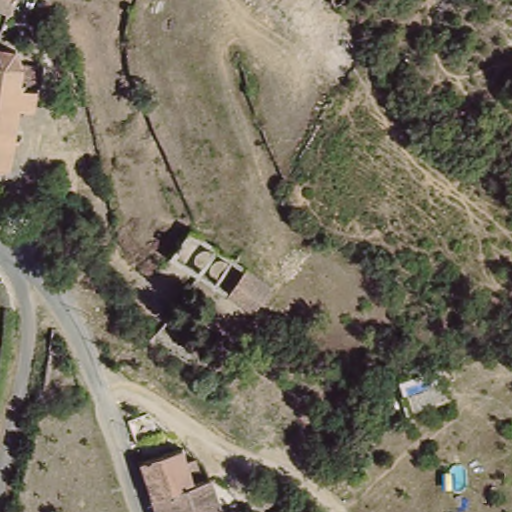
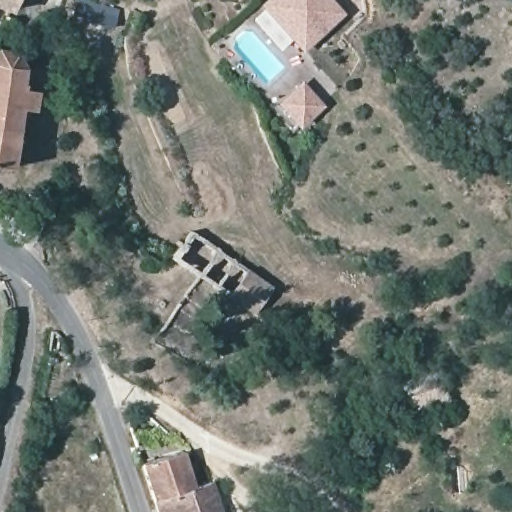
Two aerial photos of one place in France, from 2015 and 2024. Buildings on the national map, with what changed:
unchanged [(6,15),(0,12),(0,0),(13,0),(6,15)]
new [(346,13),(304,53),(258,5),(265,0),(334,0),(346,13)]
demolished [(347,81),(307,36),(321,22),(358,58),(358,65),(347,81)]
unchanged [(5,56),(12,62),(16,70),(36,76),(33,92),(18,93),(31,94),(28,116),(15,113),(8,141),(1,170),(0,170),(0,56),(5,56)]
new [(325,107),(300,129),(277,103),(302,81),(325,107)]
unchanged [(30,230),(17,226),(19,221),(32,224),(30,230)]
unchanged [(226,296),(241,265),(270,289),(251,320),(226,296)]
unchanged [(185,486),(156,498),(127,427),(150,417),(173,442),(185,486)]
unchanged [(185,486),(206,479),(218,512),(162,512),(156,498),(185,486)]

